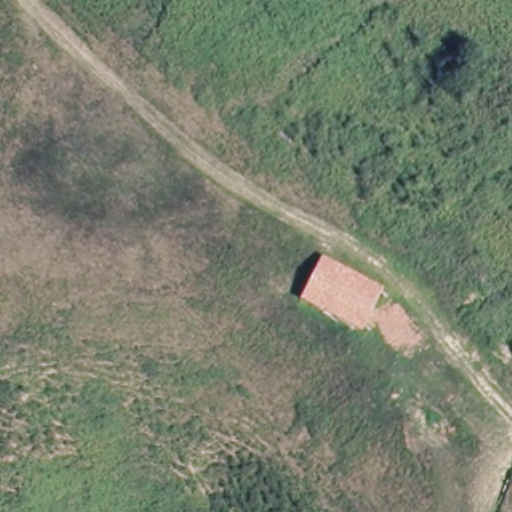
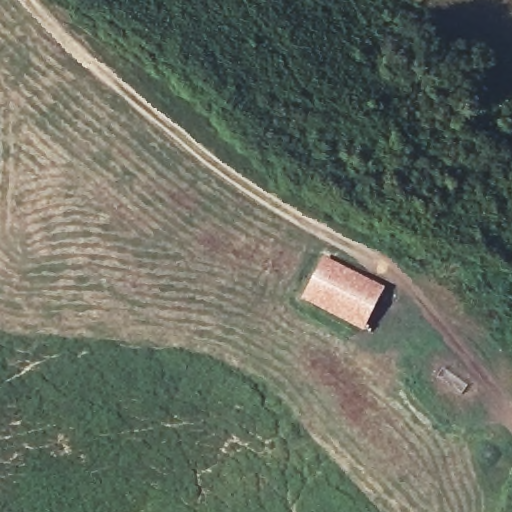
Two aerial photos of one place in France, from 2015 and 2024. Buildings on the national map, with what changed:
unchanged [(365,320),(300,283),(320,254),(385,288),(365,320)]

